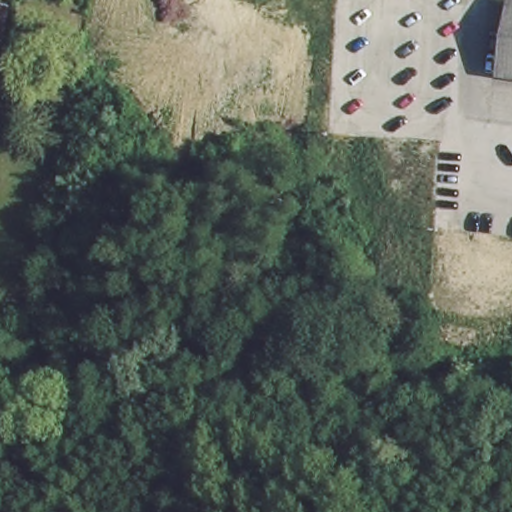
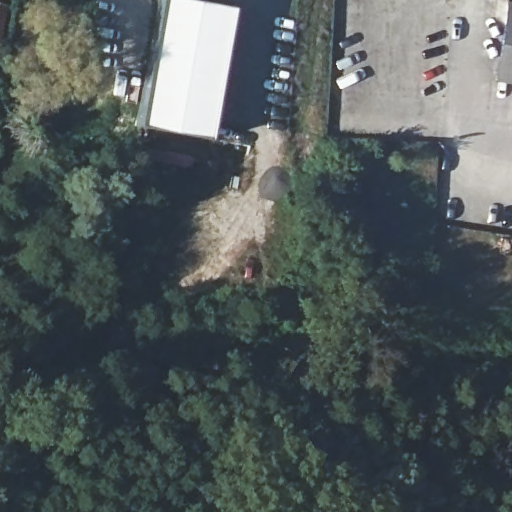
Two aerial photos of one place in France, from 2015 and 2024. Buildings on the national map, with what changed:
new [(206,138),(136,124),(158,0),(195,0),(229,6),(206,138)]
unchanged [(494,62),(503,0),(512,0),(512,65),(494,62)]
unchanged [(3,44),(0,44),(0,6),(12,8),(3,44)]

